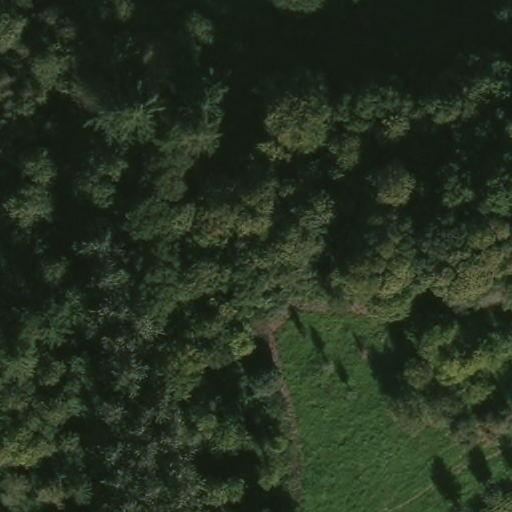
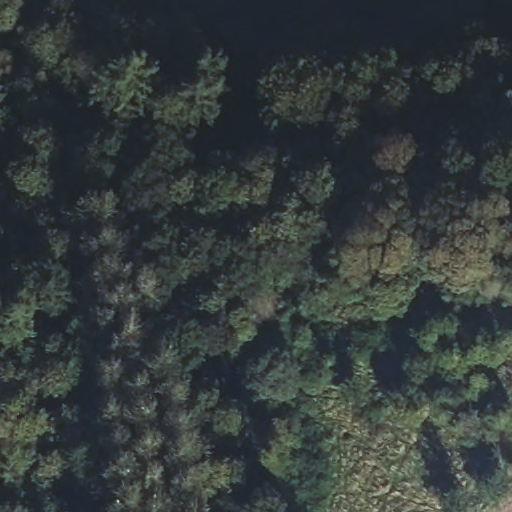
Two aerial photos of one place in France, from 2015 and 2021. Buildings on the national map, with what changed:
[]

